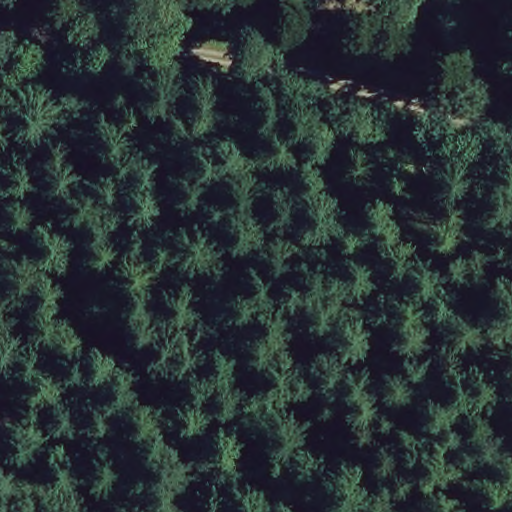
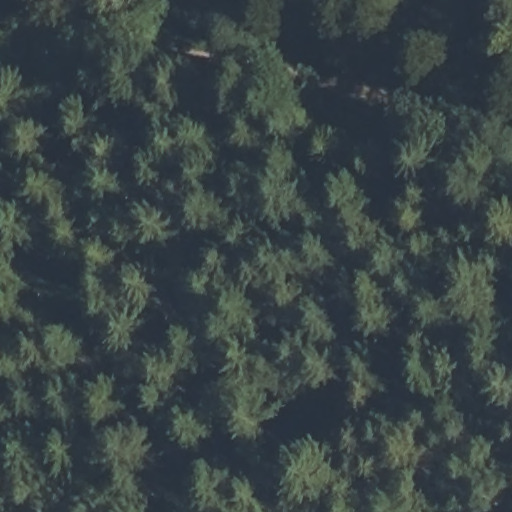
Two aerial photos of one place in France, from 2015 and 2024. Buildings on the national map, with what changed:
[]

